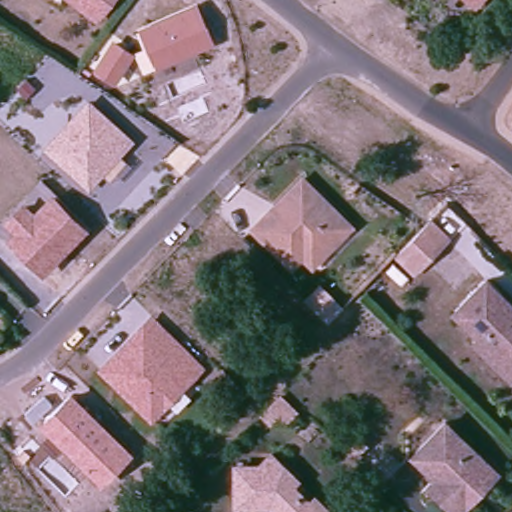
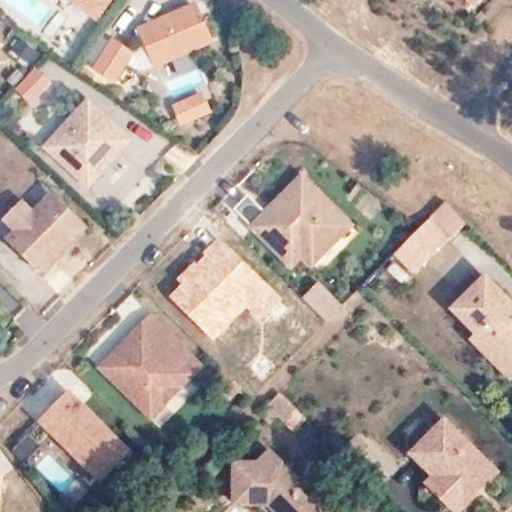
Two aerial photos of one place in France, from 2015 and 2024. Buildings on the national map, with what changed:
unchanged [(92,18),(67,0),(105,0),(92,18)]
unchanged [(474,4),(470,0),(478,0),(474,4)]
unchanged [(210,44),(157,66),(142,32),(195,9),(210,44)]
unchanged [(135,53),(117,82),(95,71),(113,40),(135,53)]
unchanged [(89,95),(136,136),(89,188),(42,146),(89,95)]
unchanged [(302,252),(301,254),(291,263),(252,225),(266,211),(274,203),(302,175),(351,223),(330,244),(312,262),(302,252)]
unchanged [(8,237),(14,232),(2,219),(22,200),(34,212),(54,192),(92,227),(42,273),(8,237)]
unchanged [(426,272),(408,255),(439,222),(457,239),(426,272)]
new [(180,284),(176,279),(217,237),(283,298),(262,321),(248,308),(214,341),(170,297),(180,284)]
new [(318,280),(342,305),(325,322),(301,297),(318,280)]
unchanged [(486,285),(512,309),(512,362),(507,367),(480,340),(456,317),(486,285)]
unchanged [(206,370),(153,420),(98,366),(151,314),(206,370)]
unchanged [(473,347),(480,340),(507,367),(512,362),(512,382),(511,383),(473,347)]
unchanged [(135,453),(102,487),(42,425),(72,394),(135,453)]
unchanged [(298,412),(277,434),(258,415),(279,396),(298,412)]
unchanged [(434,481),(411,461),(446,423),(499,472),(464,509),(462,512),(451,512),(427,490),(434,481)]
unchanged [(259,512),(234,512),(233,467),(257,465),(270,452),(294,476),(289,481),(311,503),(317,496),(334,512),(272,512),(271,511),(259,512)]
new [(5,478),(1,512),(0,512),(0,472),(5,478)]

